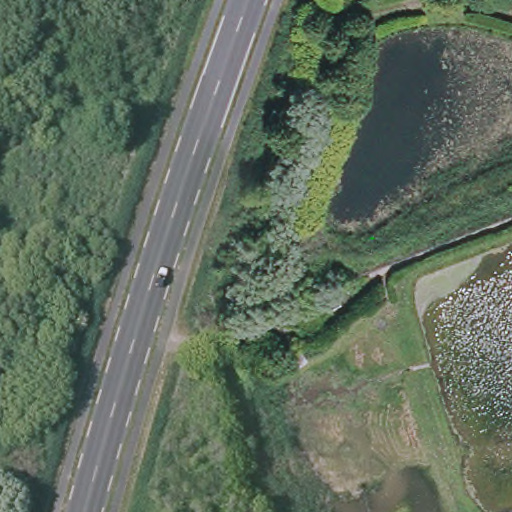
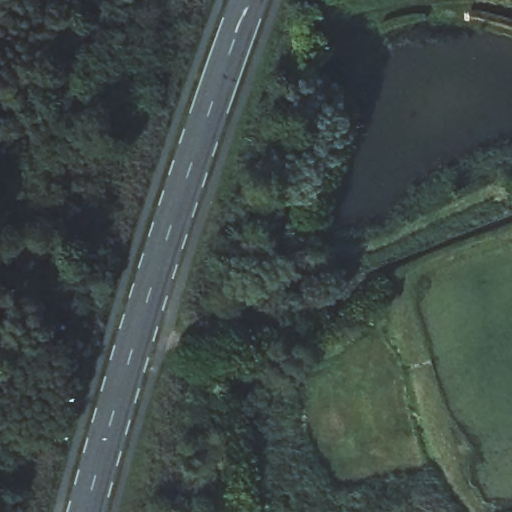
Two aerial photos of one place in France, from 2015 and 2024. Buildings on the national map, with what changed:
unchanged [(298,336),(312,355),(295,365),(282,347),(298,336)]

